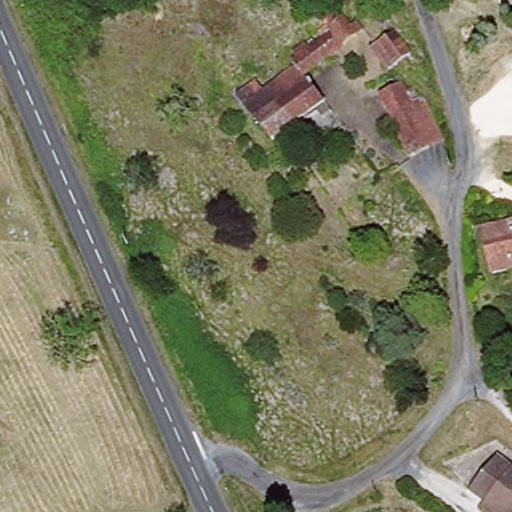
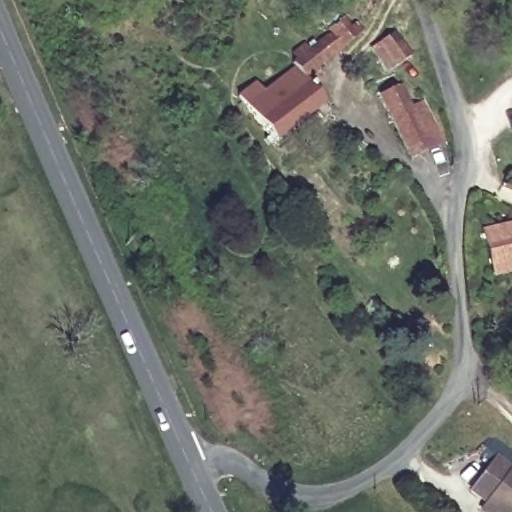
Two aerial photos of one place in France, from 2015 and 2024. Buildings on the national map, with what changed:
unchanged [(247,103),(297,63),(293,60),(330,30),(322,22),(332,12),(352,31),(359,28),(365,32),(308,82),(334,114),(325,121),(316,111),(277,140),(247,103)]
unchanged [(412,51),(389,66),(374,43),(396,27),(412,51)]
unchanged [(429,102),(451,144),(416,160),(385,95),(407,85),(417,107),(429,102)]
unchanged [(499,276),(488,224),(512,219),(512,273),(499,276)]
unchanged [(502,456),(512,464),(512,512),(504,512),(475,489),(502,456)]

